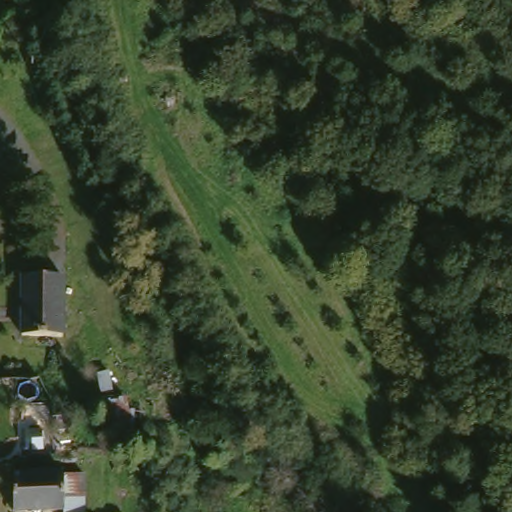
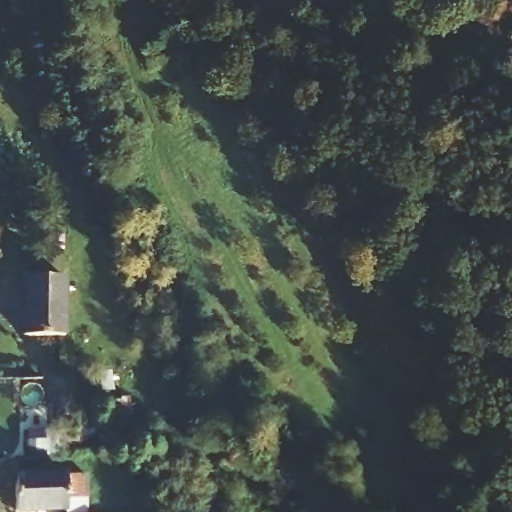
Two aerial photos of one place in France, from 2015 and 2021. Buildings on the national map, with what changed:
unchanged [(70,276),(69,337),(28,337),(28,277),(70,276)]
unchanged [(73,508),(106,510),(106,512),(21,512),(20,472),(52,467),(69,473),(73,508)]

